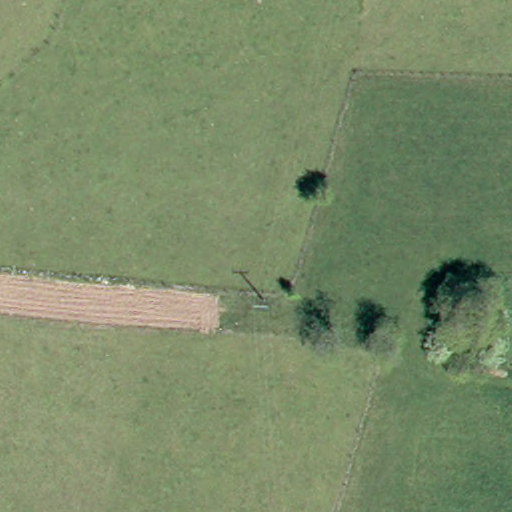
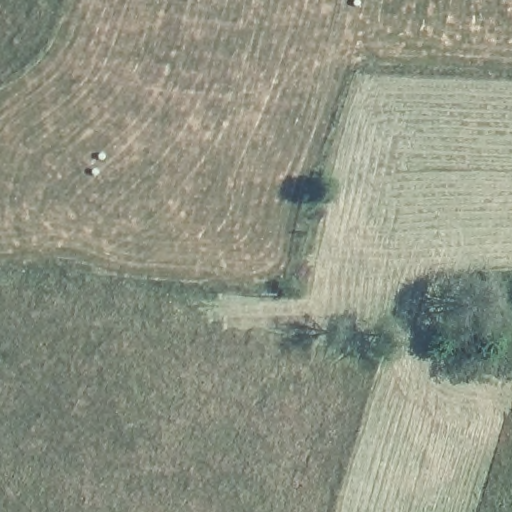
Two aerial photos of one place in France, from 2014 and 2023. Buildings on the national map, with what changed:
[]

